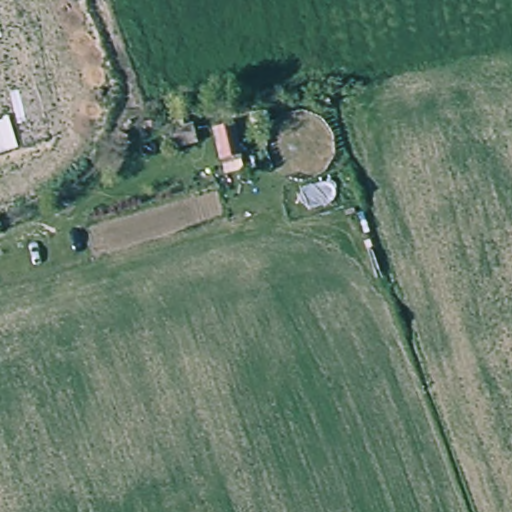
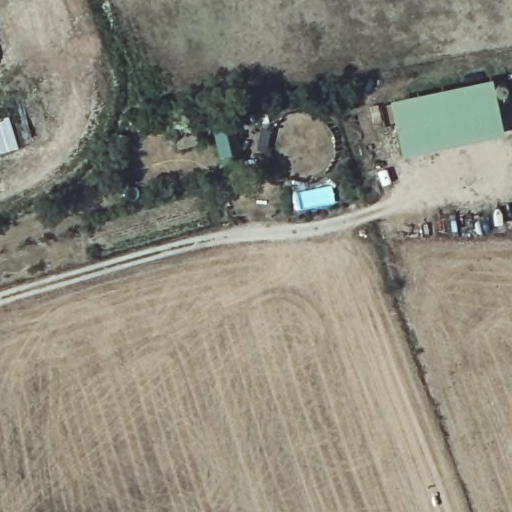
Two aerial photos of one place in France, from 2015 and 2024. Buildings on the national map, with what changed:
new [(503,131),(402,155),(390,98),(492,77),(503,131)]
unchanged [(201,117),(210,149),(176,157),(168,127),(201,117)]

